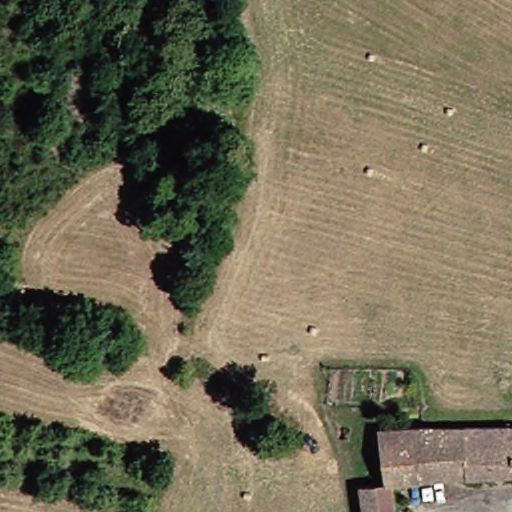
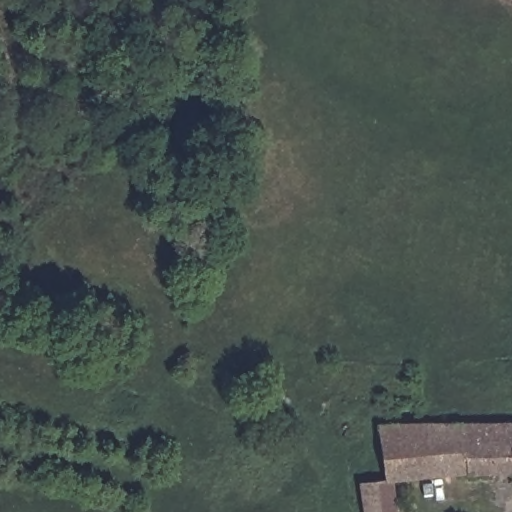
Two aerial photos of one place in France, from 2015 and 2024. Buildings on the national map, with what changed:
unchanged [(381,478),(379,426),(512,422),(512,472),(390,482),(391,512),(360,512),(359,479),(381,478)]

